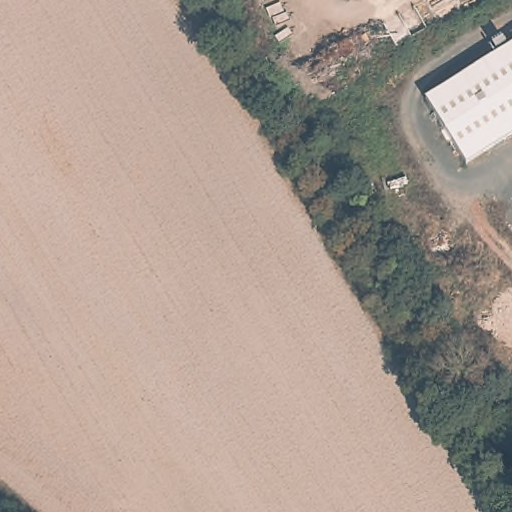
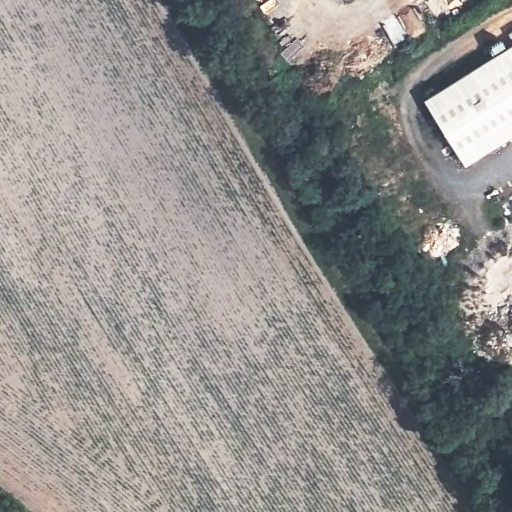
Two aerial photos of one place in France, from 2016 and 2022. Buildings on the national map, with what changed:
unchanged [(428,94),(512,41),(512,126),(466,154),(428,94)]

